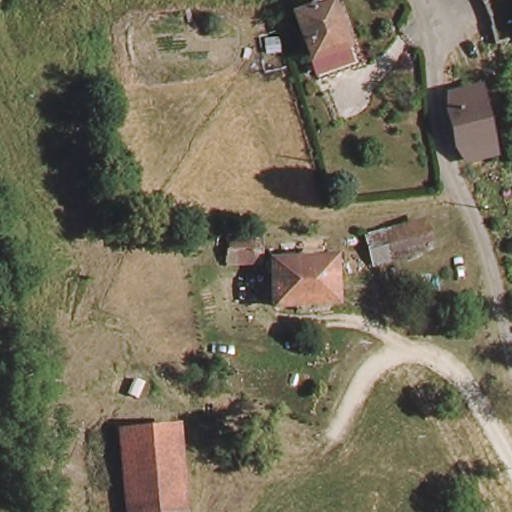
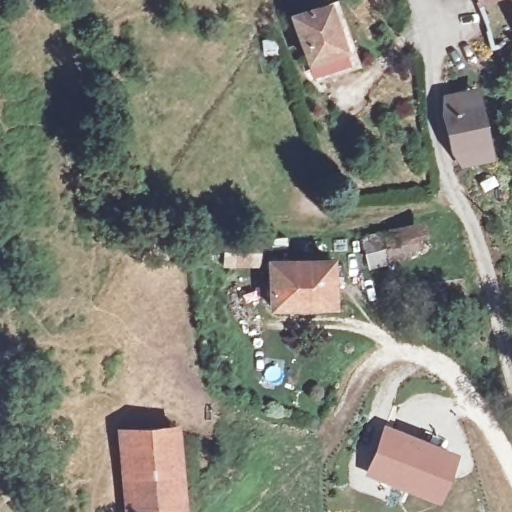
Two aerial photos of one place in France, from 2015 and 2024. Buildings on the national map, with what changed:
unchanged [(444,6),(443,0),(468,0),(444,6)]
unchanged [(478,13),(474,0),(512,0),(512,5),(478,13)]
unchanged [(304,16),(339,6),(351,2),(369,66),(358,69),(322,79),(304,16)]
unchanged [(463,166),(462,161),(459,153),(456,154),(444,116),(447,115),(443,102),(456,97),(476,92),(478,99),(494,150),(495,156),(463,166)]
unchanged [(366,232),(423,223),(429,257),(372,267),(366,232)]
unchanged [(264,265),(238,268),(238,237),(264,237),(264,265)]
unchanged [(284,308),(283,265),(346,262),(349,306),(284,308)]
new [(384,423),(457,451),(440,503),(364,475),(384,423)]
unchanged [(181,512),(128,512),(124,435),(177,432),(181,512)]

